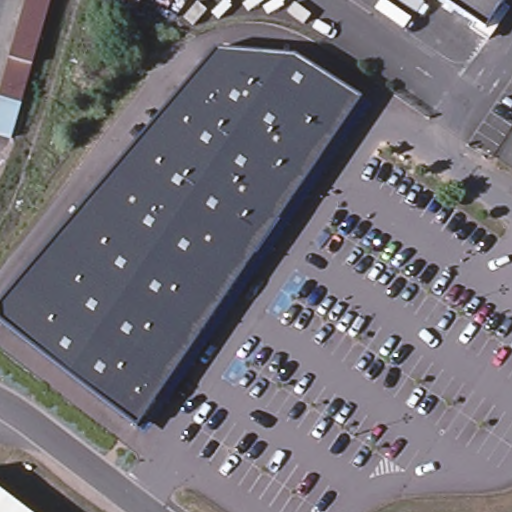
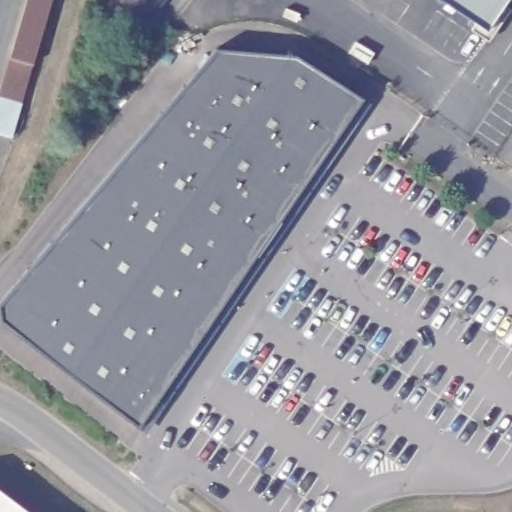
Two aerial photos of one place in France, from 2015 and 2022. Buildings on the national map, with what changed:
unchanged [(0,93),(0,91),(25,0),(49,0),(22,97),(13,132),(0,128),(0,93)]
unchanged [(491,14),(478,32),(465,22),(468,17),(445,0),(494,0),(486,11),(491,14)]
unchanged [(0,297),(221,41),(300,48),(367,91),(350,117),(142,420),(37,339),(3,313),(0,297)]
unchanged [(0,489),(30,512),(0,512),(0,489)]

